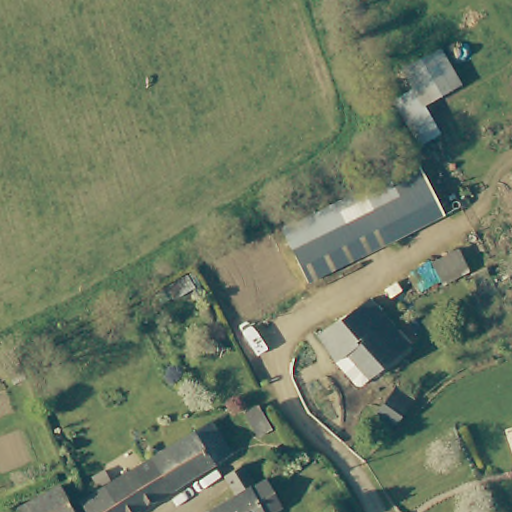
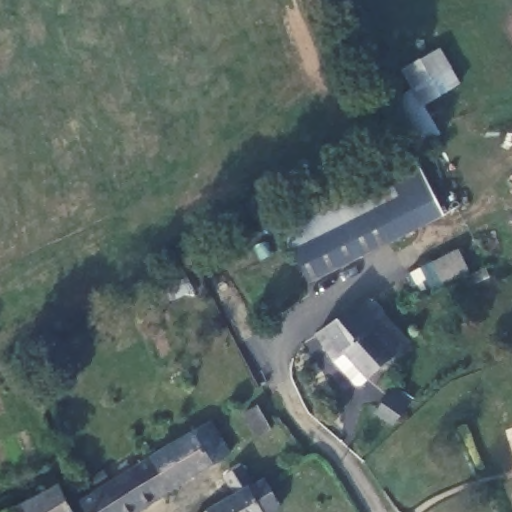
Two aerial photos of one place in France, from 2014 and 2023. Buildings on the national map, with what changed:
unchanged [(413,92),(401,70),(437,50),(450,74),(458,88),(435,100),(421,108),(413,92)]
unchanged [(437,137),(418,147),(394,102),(413,92),(421,108),(437,137)]
unchanged [(285,231),(420,163),(447,216),(311,284),(285,231)]
unchanged [(380,308),(411,338),(368,372),(361,377),(356,377),(330,351),(330,350),(328,348),(315,331),(330,321),(365,296),(380,308)]
unchanged [(396,430),(382,413),(388,407),(395,402),(411,420),(396,430)]
unchanged [(260,410),(272,434),(260,442),(246,418),(260,410)]
unchanged [(135,473),(194,437),(215,425),(233,458),(217,467),(215,469),(155,505),(144,512),(87,512),(82,504),(109,488),(124,479),(135,473)]
unchanged [(231,478),(257,465),(268,485),(282,512),(215,512),(242,498),(231,478)]
unchanged [(19,512),(57,491),(69,512),(19,512)]

